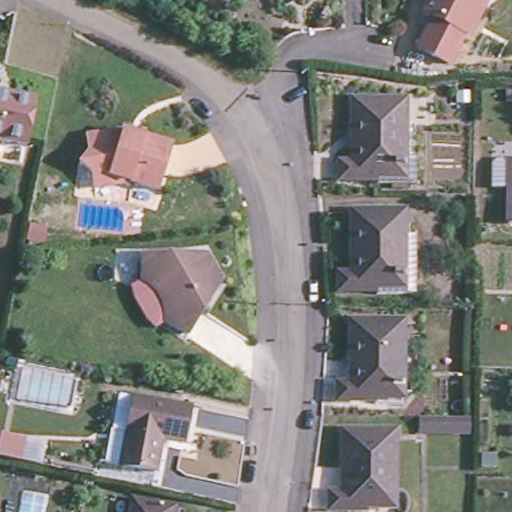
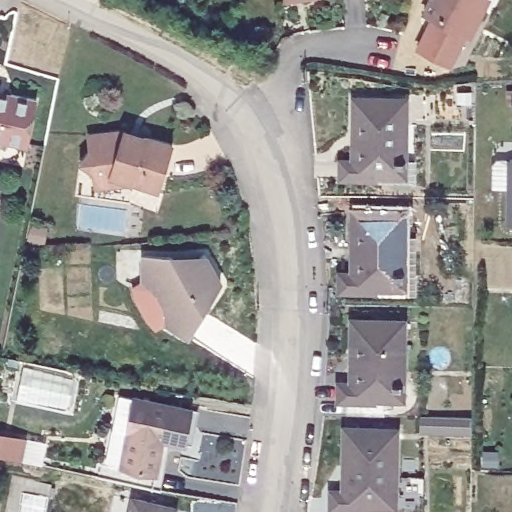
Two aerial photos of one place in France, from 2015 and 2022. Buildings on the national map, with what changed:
unchanged [(464,29),(449,59),(417,44),(432,14),(421,9),(425,0),(483,0),(469,31),(464,29)]
unchanged [(468,91),(469,104),(457,104),(457,91),(468,91)]
unchanged [(411,178),(377,178),(377,174),(338,174),(339,157),(351,157),(351,94),(402,94),(402,156),(412,157),(411,178)]
unchanged [(7,97),(8,95),(34,100),(24,147),(0,142),(0,95),(7,97)]
unchanged [(92,177),(91,172),(77,163),(88,151),(86,135),(123,130),(142,136),(171,144),(157,190),(131,182),(93,187),(92,177)]
unchanged [(508,156),(512,156),(512,220),(507,220),(508,156)]
unchanged [(395,271),(371,272),(370,287),(333,287),(332,268),(345,269),(346,207),(396,208),(396,231),(395,271)]
unchanged [(407,232),(407,290),(370,290),(370,287),(371,272),(395,271),(396,231),(407,232)]
unchanged [(142,249),(171,250),(179,264),(207,250),(220,275),(194,289),(201,305),(186,330),(165,317),(154,324),(144,314),(132,292),(130,282),(141,275),(142,249)]
unchanged [(375,397),(336,397),(336,379),(349,380),(350,317),(400,317),(399,383),(399,398),(375,397)]
unchanged [(182,432),(159,428),(154,463),(120,458),(125,422),(110,421),(115,389),(130,392),(186,400),(182,432)]
unchanged [(369,505),(330,505),(330,487),(342,487),(342,425),(393,426),(393,491),(392,505),(369,505)]
unchanged [(28,439),(23,461),(0,456),(0,433),(28,439)]
unchanged [(171,502),(169,512),(125,512),(129,494),(171,502)]

